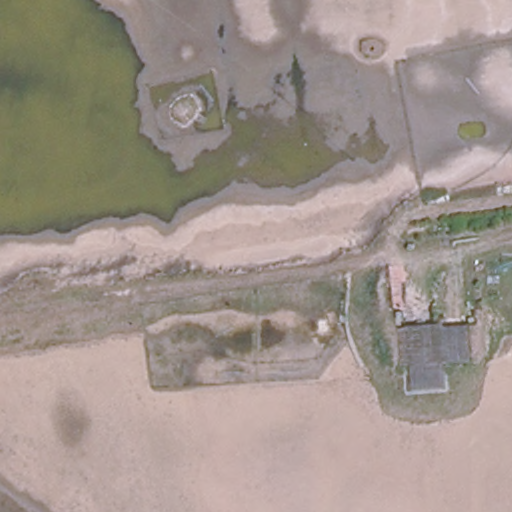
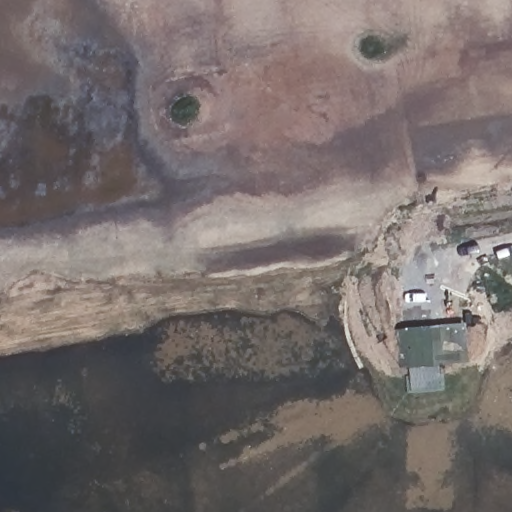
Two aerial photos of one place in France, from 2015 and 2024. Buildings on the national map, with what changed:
unchanged [(465,326),(468,366),(445,368),(449,394),(405,397),(403,375),(401,330),(465,326)]

